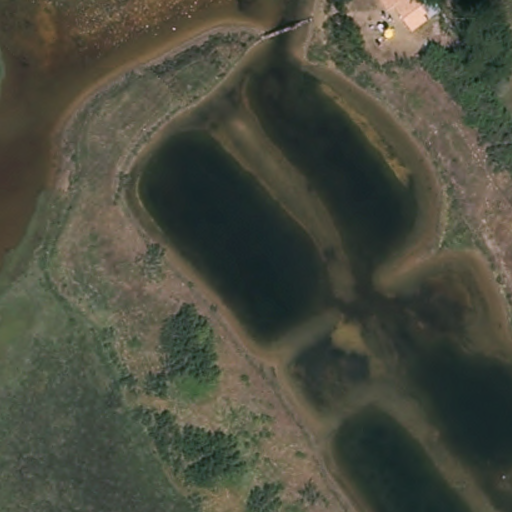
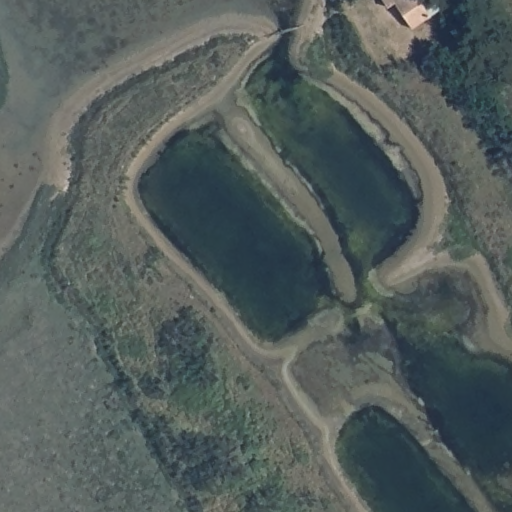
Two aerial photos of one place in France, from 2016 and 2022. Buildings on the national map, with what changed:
unchanged [(439,15),(416,30),(399,4),(404,0),(429,0),(439,15)]

